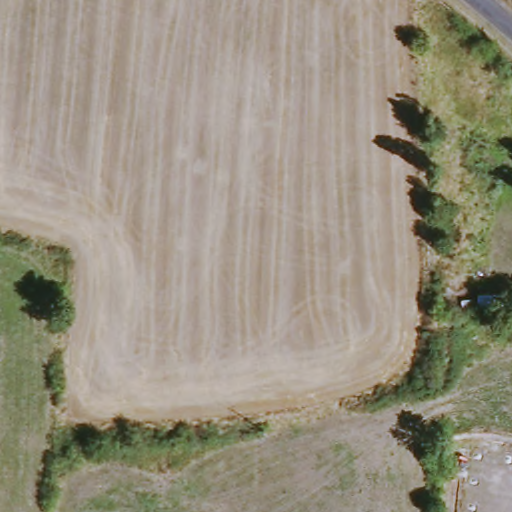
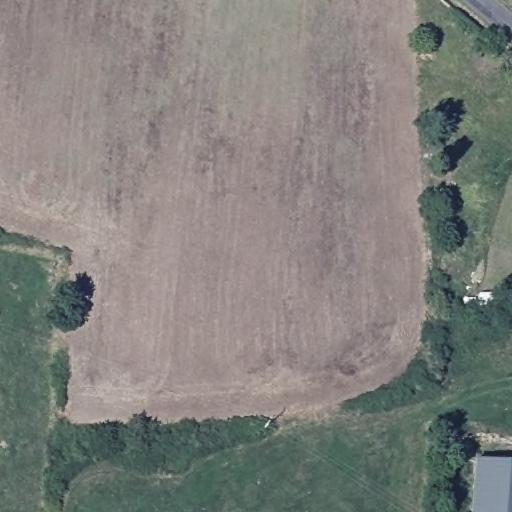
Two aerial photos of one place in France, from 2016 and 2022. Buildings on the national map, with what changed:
new [(512,463),(512,512),(471,512),(476,460),(512,463)]

